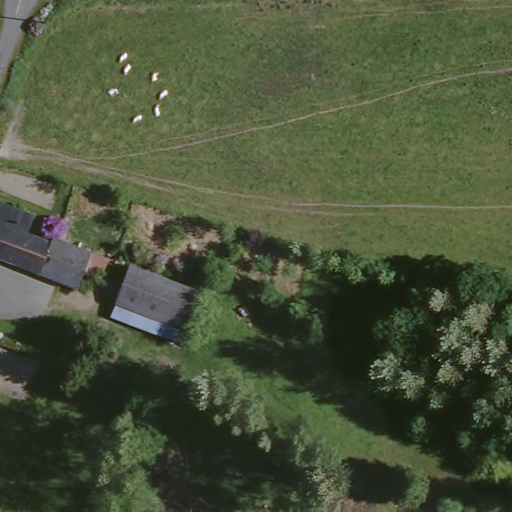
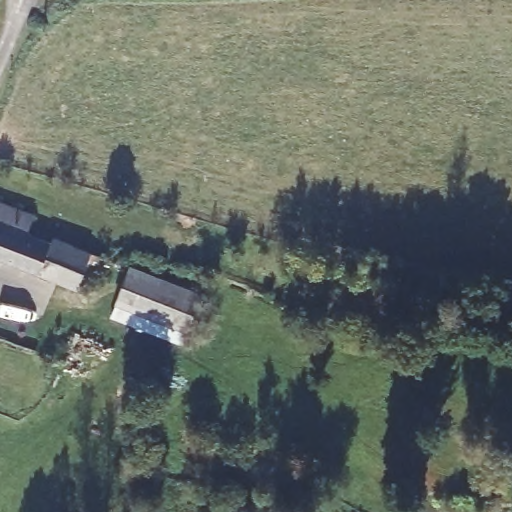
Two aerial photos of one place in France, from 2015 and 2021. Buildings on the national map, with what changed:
unchanged [(30,215),(24,230),(51,241),(40,273),(0,258),(0,205),(30,215)]
unchanged [(51,241),(53,235),(90,251),(76,288),(40,273),(51,241)]
unchanged [(112,312),(133,267),(197,293),(181,341),(112,312)]

